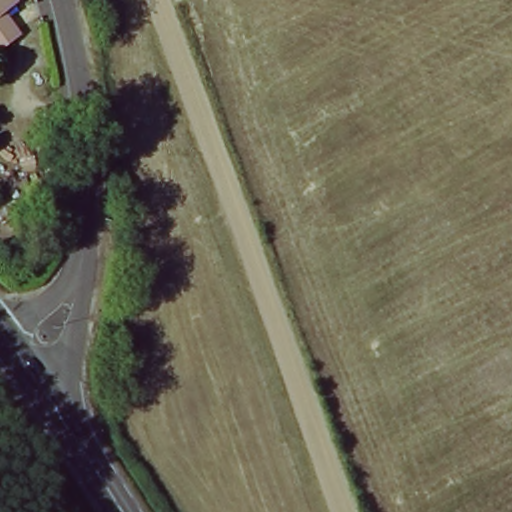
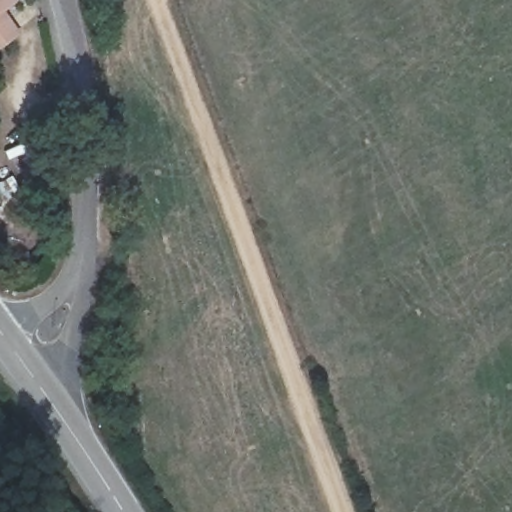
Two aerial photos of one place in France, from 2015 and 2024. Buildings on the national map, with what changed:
unchanged [(3,9),(19,31),(0,45),(0,0),(15,0),(3,9)]

